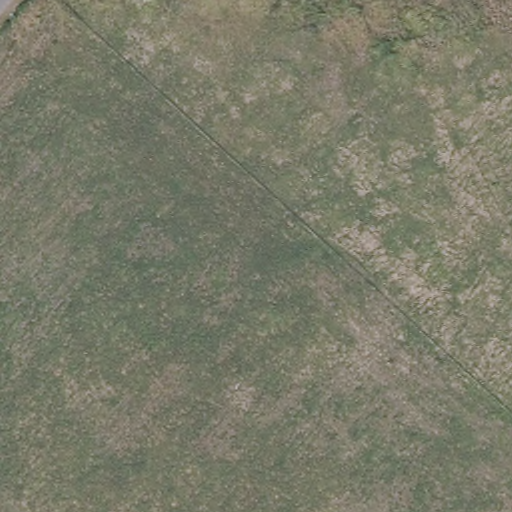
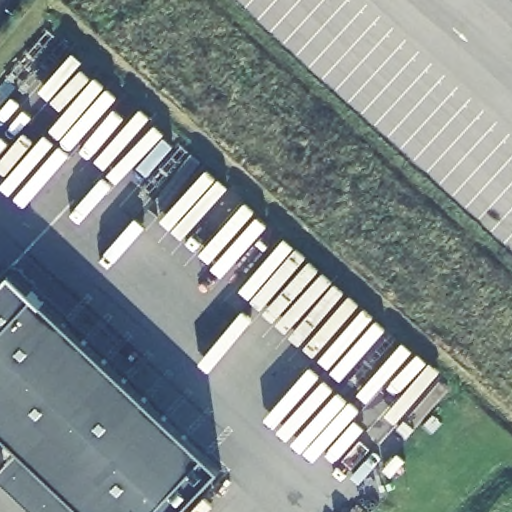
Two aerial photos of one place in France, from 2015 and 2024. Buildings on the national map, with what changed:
new [(6,283),(212,481),(182,512),(75,512),(16,459),(0,445),(0,290),(6,283)]
new [(16,459),(75,512),(25,512),(0,488),(0,476),(16,459)]

